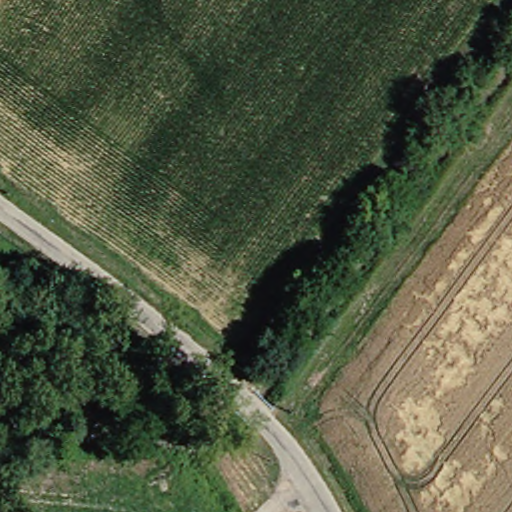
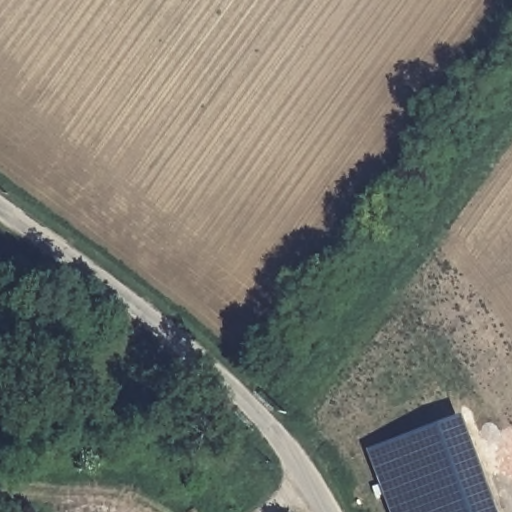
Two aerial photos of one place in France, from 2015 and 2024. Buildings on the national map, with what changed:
new [(370,449),(466,413),(503,512),(393,512),(370,449)]

